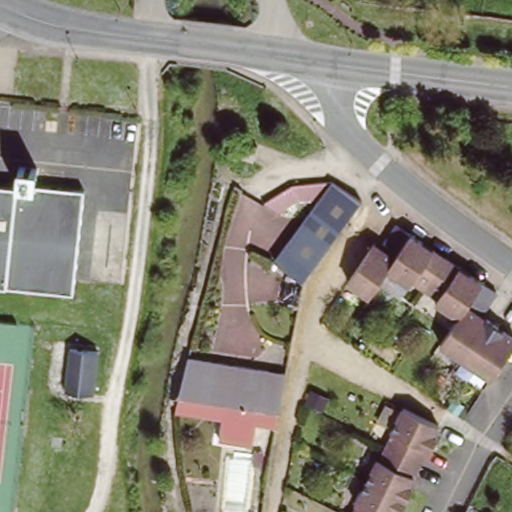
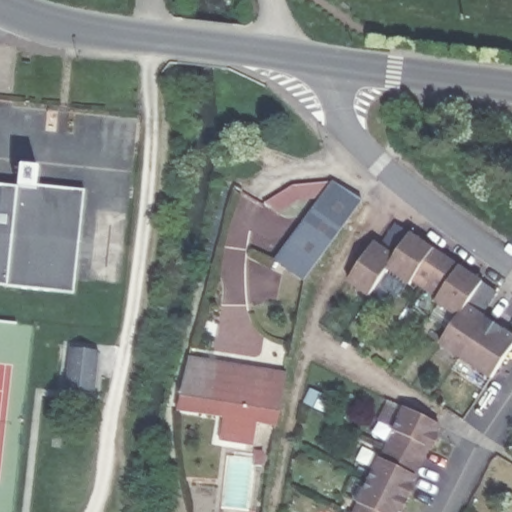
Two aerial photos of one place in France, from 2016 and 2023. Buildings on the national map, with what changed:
unchanged [(286,143),(278,140),(281,132),(292,137),(286,143)]
unchanged [(18,166),(35,168),(33,187),(83,193),(71,291),(0,283),(0,184),(15,185),(18,166)]
unchanged [(331,186),(353,199),(342,217),(319,257),(305,279),(274,263),(324,180),(331,186)]
unchanged [(504,365),(493,381),(459,358),(441,346),(459,318),(434,302),(437,298),(424,290),(412,281),(409,285),(387,270),(368,297),(346,283),(346,282),(350,277),(369,250),(371,246),(373,244),(378,248),(394,224),(422,243),(424,244),(433,250),(456,265),(459,267),(469,274),(497,293),(483,315),(482,316),(483,317),(487,319),(488,320),(498,327),(504,331),(512,337),(512,352),(504,365)]
unchanged [(99,359),(93,403),(60,398),(66,354),(99,359)]
unchanged [(223,422),(176,411),(176,408),(178,397),(186,365),(187,358),(286,378),(284,390),(278,417),(274,425),(274,430),(256,428),(251,448),(219,441),(223,422)]
unchanged [(354,507),(365,484),(376,462),(378,463),(386,449),(393,434),(390,432),(401,411),(436,427),(433,432),(432,434),(431,436),(436,438),(429,453),(424,451),(407,488),(411,489),(411,490),(410,491),(401,512),(354,512),(356,509),(354,507)]

